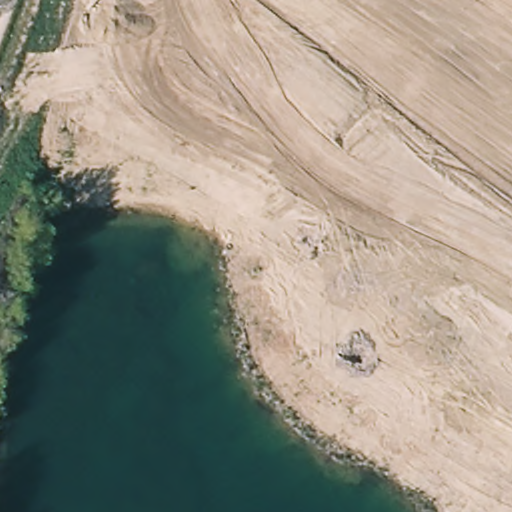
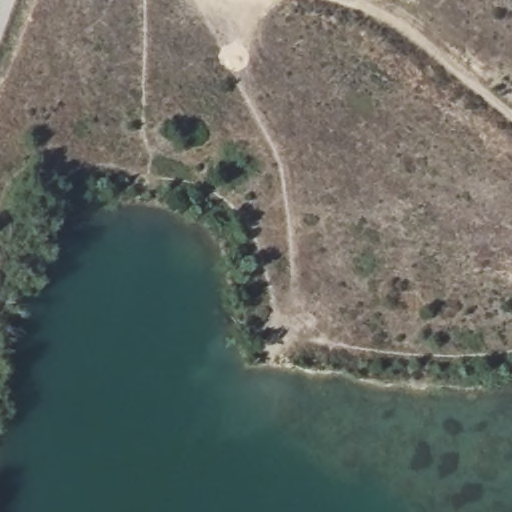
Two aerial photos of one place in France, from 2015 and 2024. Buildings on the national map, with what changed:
[]

